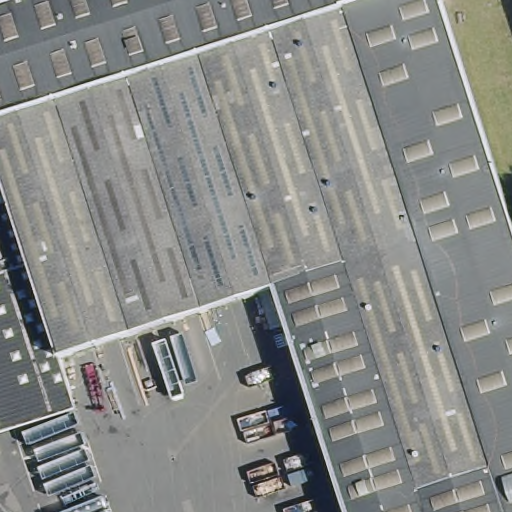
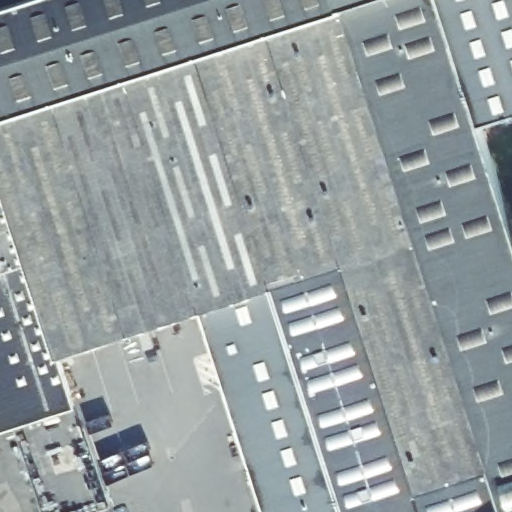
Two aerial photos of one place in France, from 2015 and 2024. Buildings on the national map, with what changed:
unchanged [(65,357),(77,411),(0,435),(0,8),(26,0),(442,0),(512,218),(512,512),(342,512),(270,288),(65,357)]
new [(442,0),(512,0),(512,114),(482,124),(442,0)]
new [(270,288),(342,512),(268,512),(204,311),(270,288)]
demolished [(50,443),(47,440),(47,437),(47,434),(48,430),(50,428),(56,426),(60,427),(62,429),(65,431),(65,435),(65,438),(64,441),(62,444),(59,445),(55,445),(53,445),(50,443)]

